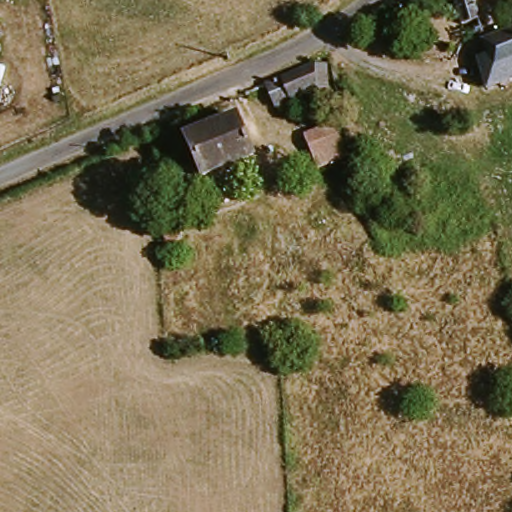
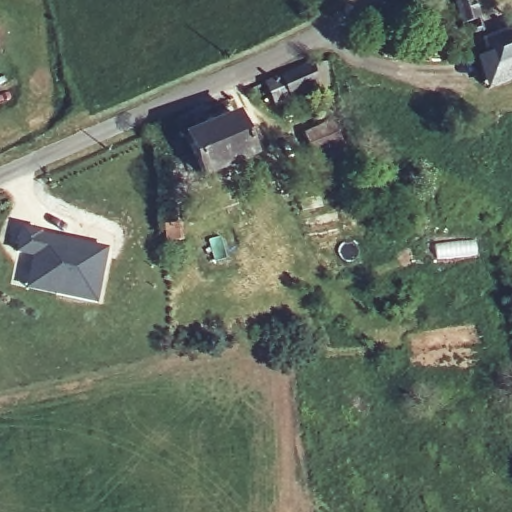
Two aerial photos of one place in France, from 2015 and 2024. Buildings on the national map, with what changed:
unchanged [(464,26),(456,6),(463,4),(462,0),(473,0),(479,22),(464,26)]
unchanged [(488,48),(512,39),(512,71),(499,76),(488,48)]
unchanged [(267,85),(317,61),(319,94),(279,109),(267,85)]
unchanged [(191,140),(239,118),(257,158),(208,180),(191,140)]
unchanged [(334,121),(349,156),(318,168),(304,131),(334,121)]
new [(95,305),(25,290),(32,259),(13,254),(21,227),(43,232),(43,235),(108,247),(95,305)]
unchanged [(176,254),(159,257),(158,243),(175,243),(176,254)]

